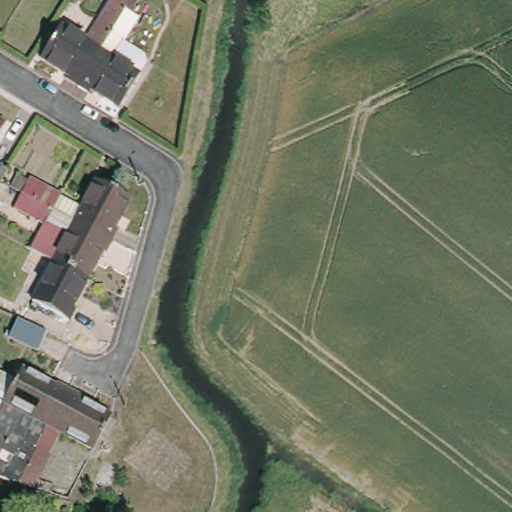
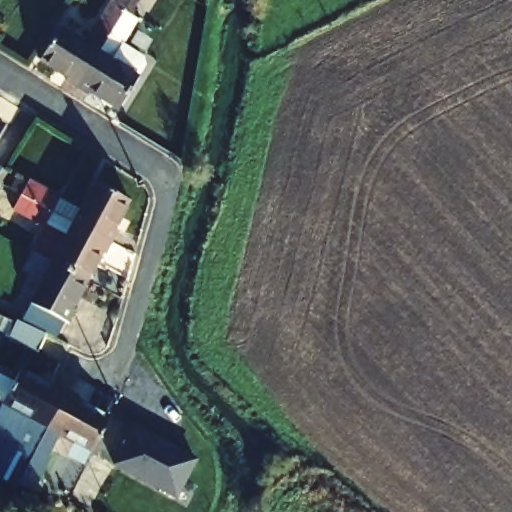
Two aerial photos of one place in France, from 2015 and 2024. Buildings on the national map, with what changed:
unchanged [(131,0),(100,54),(84,43),(107,0),(131,0)]
unchanged [(83,94),(72,87),(75,83),(45,65),(67,32),(106,57),(83,94)]
unchanged [(143,80),(123,112),(97,96),(93,101),(83,94),(106,57),(143,80)]
unchanged [(0,133),(0,125),(3,127),(0,133)]
unchanged [(75,221),(53,262),(31,249),(42,229),(0,206),(0,168),(82,209),(75,221)]
unchanged [(82,209),(96,182),(132,204),(117,230),(120,231),(113,243),(75,221),(82,209)]
unchanged [(113,243),(107,253),(104,251),(87,281),(53,262),(75,221),(113,243)]
unchanged [(71,310),(74,312),(68,323),(32,301),(52,264),(53,262),(87,281),(71,310)]
unchanged [(44,347),(15,335),(21,320),(50,333),(44,347)]
unchanged [(0,482),(0,412),(3,407),(0,405),(0,377),(14,385),(22,372),(53,390),(57,387),(70,393),(50,430),(17,488),(0,482)]
unchanged [(70,393),(77,397),(76,402),(112,422),(92,453),(50,430),(70,393)]
new [(135,426),(156,440),(155,441),(194,465),(172,500),(112,464),(135,426)]

